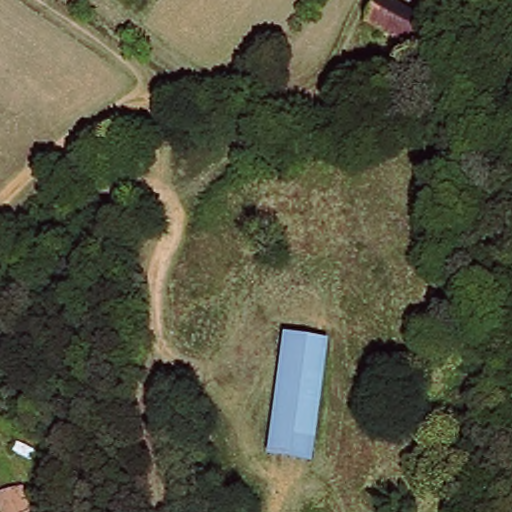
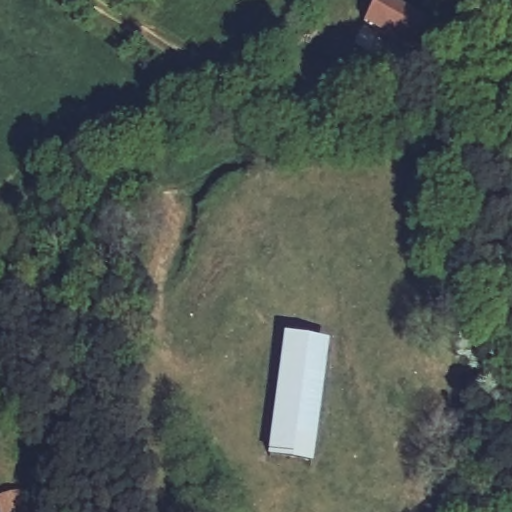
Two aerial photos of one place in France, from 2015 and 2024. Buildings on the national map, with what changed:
unchanged [(375,28),(387,3),(433,21),(423,47),(375,28)]
unchanged [(311,467),(270,461),(290,338),(330,346),(311,467)]
unchanged [(22,489),(27,512),(3,512),(0,501),(0,495),(22,489)]

